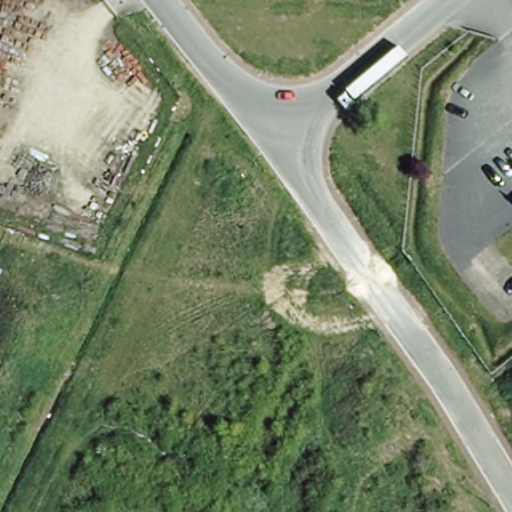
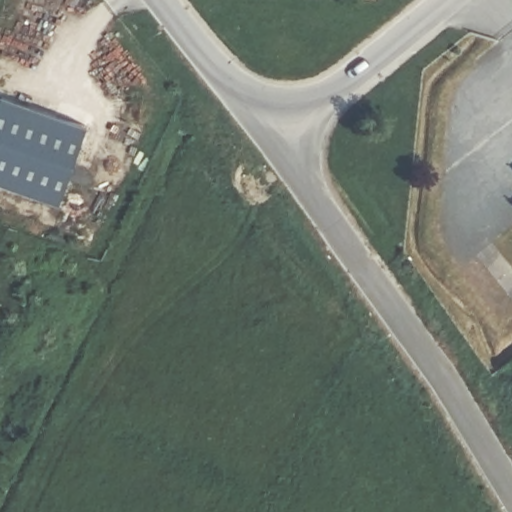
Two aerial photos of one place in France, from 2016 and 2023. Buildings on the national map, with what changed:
new [(0,97),(87,127),(59,206),(0,186),(0,98),(0,97)]

